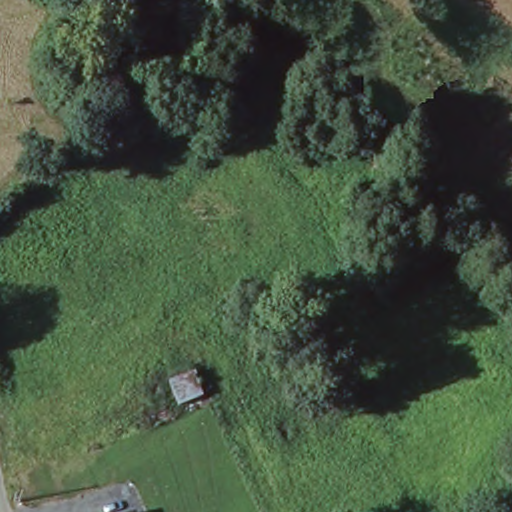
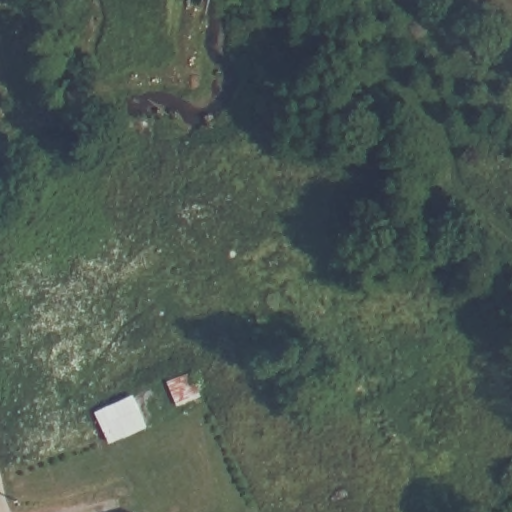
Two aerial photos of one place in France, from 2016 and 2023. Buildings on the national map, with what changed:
unchanged [(194,368),(205,394),(180,404),(169,376),(194,368)]
new [(147,427),(111,444),(96,411),(135,394),(147,427)]
unchanged [(137,512),(132,512),(137,510),(137,512)]

